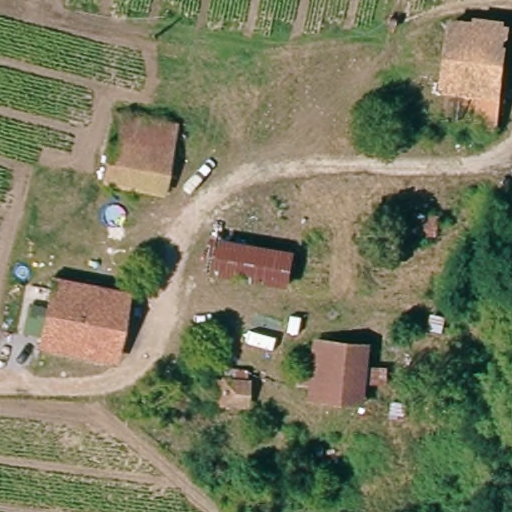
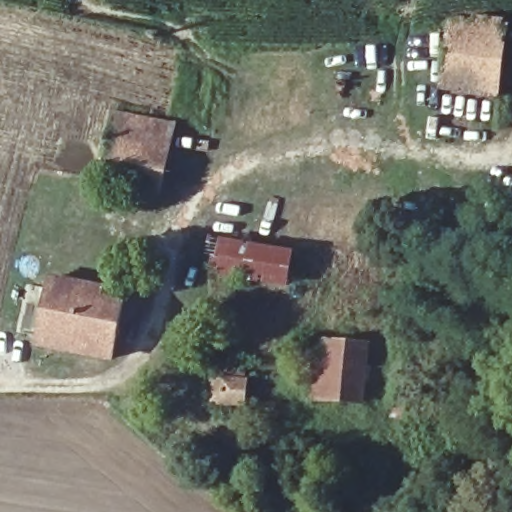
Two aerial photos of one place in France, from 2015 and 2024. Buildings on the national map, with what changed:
unchanged [(457,16),(512,22),(512,49),(505,92),(446,86),(457,16)]
unchanged [(153,193),(105,184),(111,149),(117,116),(153,124),(175,130),(170,161),(164,195),(153,193)]
unchanged [(208,278),(215,241),(299,253),(294,290),(208,278)]
unchanged [(120,360),(45,346),(55,285),(130,299),(120,360)]
unchanged [(347,405),(315,398),(321,348),(322,347),(323,338),(375,346),(373,355),(364,408),(347,405)]
unchanged [(229,380),(251,384),(246,404),(224,399),(229,380)]

